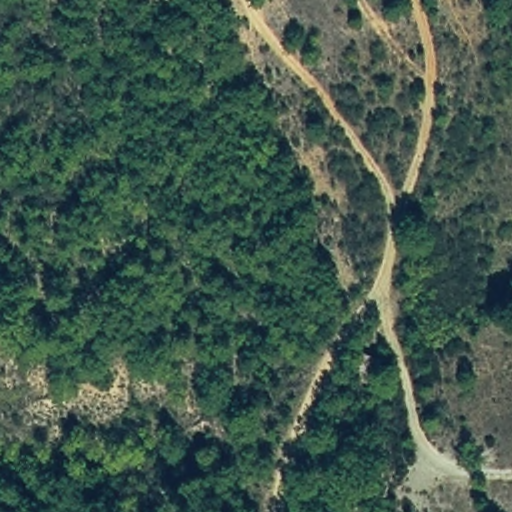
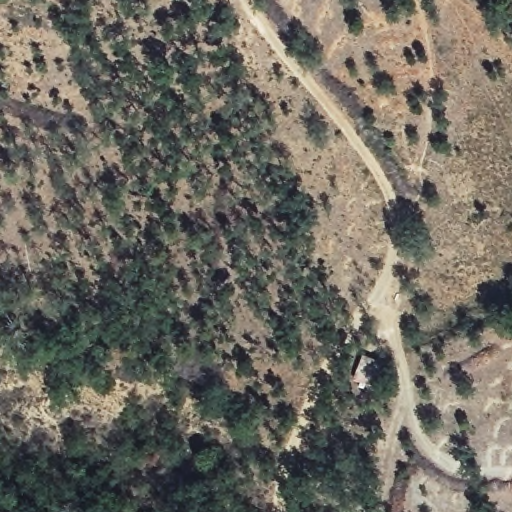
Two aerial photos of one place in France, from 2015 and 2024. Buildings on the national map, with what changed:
unchanged [(357,349),(379,354),(373,383),(349,378),(357,349)]

